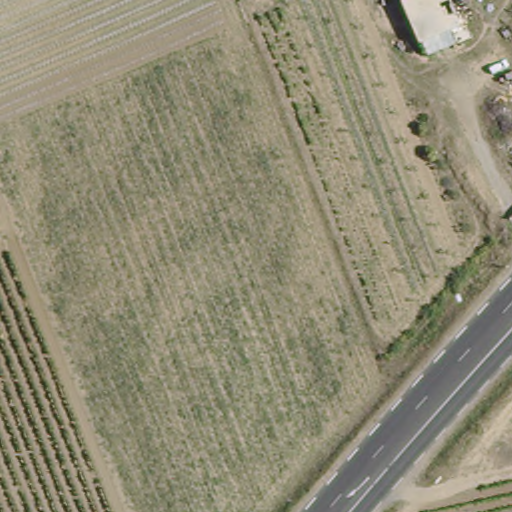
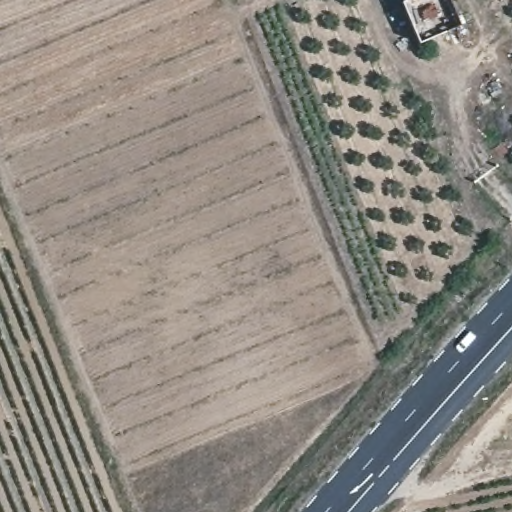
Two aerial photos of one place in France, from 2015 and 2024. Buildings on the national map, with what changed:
unchanged [(447,34),(450,46),(423,60),(398,4),(407,0),(447,0),(460,26),(447,34)]

